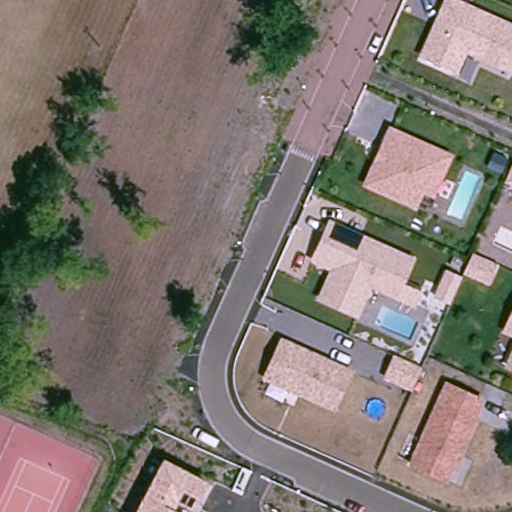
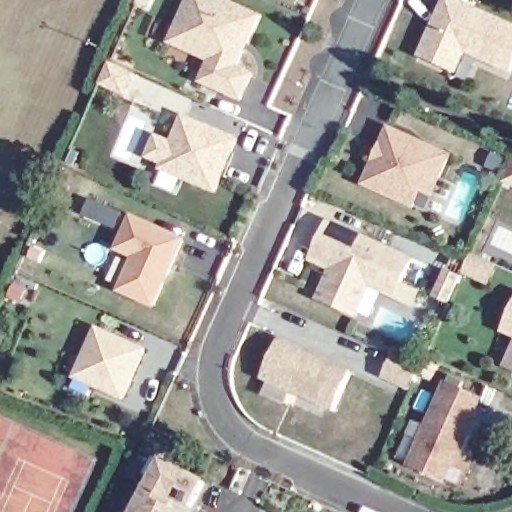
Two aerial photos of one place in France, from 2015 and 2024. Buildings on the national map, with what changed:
new [(251,76),(240,99),(201,82),(211,61),(170,43),(176,31),(190,0),(218,0),(258,18),(246,43),(242,53),(235,69),(251,76)]
unchanged [(511,73),(467,55),(458,75),(418,58),(444,0),(461,0),(512,23),(512,71),(511,73)]
new [(185,118),(236,141),(226,164),(214,190),(162,167),(185,118)]
unchanged [(388,129),(447,156),(423,210),(364,184),(388,129)]
unchanged [(503,184),(512,163),(512,188),(503,184)]
new [(187,240),(156,309),(117,293),(132,259),(115,252),(132,214),(187,240)]
unchanged [(416,258),(405,283),(422,291),(415,307),(371,289),(358,319),(315,300),(328,271),(310,263),(328,218),(416,258)]
unchanged [(471,254),(495,265),(487,283),(463,273),(467,263),(471,254)]
unchanged [(510,331),(512,327),(512,332),(510,331)]
new [(97,331),(145,352),(124,399),(76,378),(97,331)]
unchanged [(280,341),(349,372),(333,409),(264,378),(280,341)]
unchanged [(393,356),(420,368),(411,389),(383,377),(393,356)]
unchanged [(450,466),(443,480),(410,465),(445,385),(479,400),(472,415),(475,416),(458,456),(453,467),(450,466)]
unchanged [(195,511),(179,502),(176,509),(182,512),(134,512),(165,457),(210,481),(195,511)]

